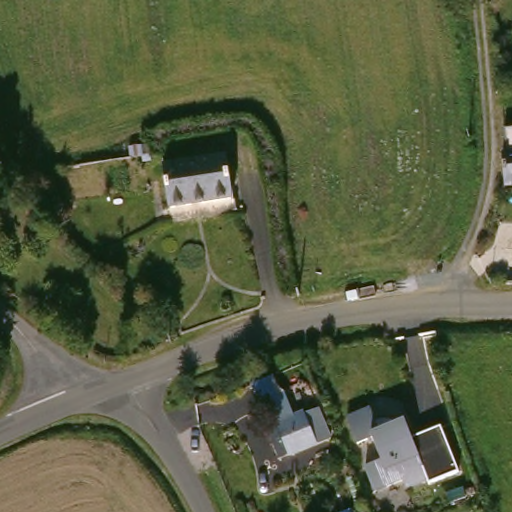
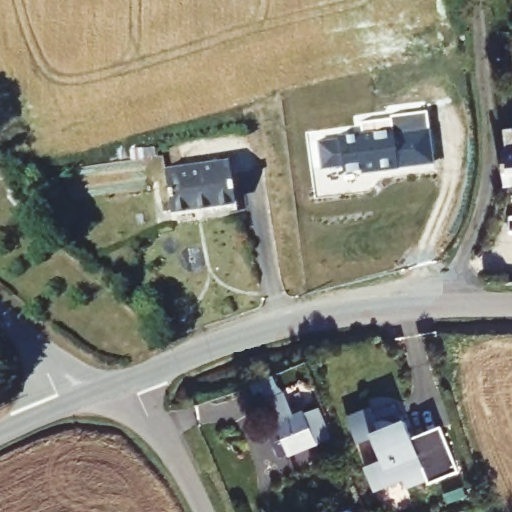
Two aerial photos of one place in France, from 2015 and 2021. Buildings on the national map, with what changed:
new [(341,135),(340,130),(364,128),(363,117),(393,114),(393,112),(429,108),(436,166),(400,172),(400,171),(369,175),(369,171),(345,174),(345,168),(324,171),(320,137),(341,135)]
unchanged [(501,175),(498,137),(502,137),(500,118),(512,116),(512,194),(504,195),(501,175)]
unchanged [(225,160),(231,203),(169,212),(162,169),(225,160)]
demolished [(493,263),(512,262),(512,287),(492,287),(493,263)]
unchanged [(269,433),(279,429),(269,404),(284,398),(294,423),(309,417),(315,435),(320,433),(323,441),(280,459),(269,433)]
unchanged [(457,474),(428,487),(425,483),(404,493),(399,484),(372,495),(360,470),(378,462),(370,439),(357,446),(345,419),(368,409),(375,421),(390,424),(402,419),(410,438),(438,426),(457,474)]

